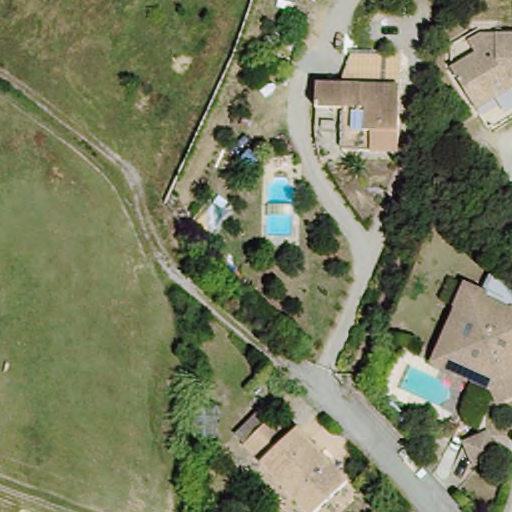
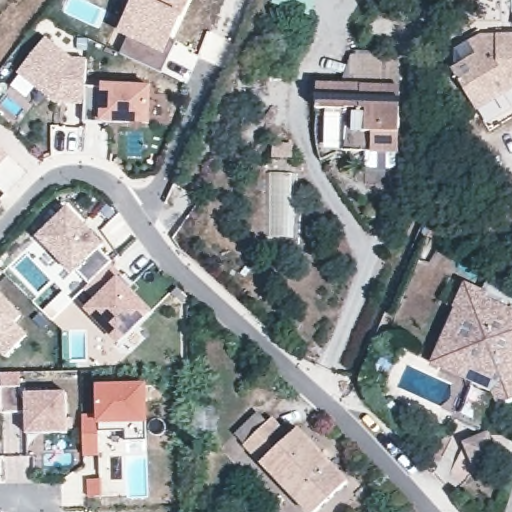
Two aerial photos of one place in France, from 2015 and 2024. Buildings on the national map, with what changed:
new [(122,54),(128,40),(118,34),(134,0),(192,0),(184,16),(173,37),(177,41),(162,72),(122,54)]
new [(273,0),(316,0),(310,16),(272,4),(273,0)]
unchanged [(474,105),(453,63),(498,42),(499,32),(512,33),(512,87),(512,89),(474,105)]
new [(54,98),(20,71),(48,37),(69,54),(84,54),(83,98),(54,98)]
new [(83,82),(100,82),(100,80),(146,80),(145,116),(101,115),(101,118),(83,117),(83,82)]
unchanged [(399,84),(396,164),(343,163),(342,121),(318,119),(320,80),(399,84)]
new [(10,157),(0,166),(0,147),(10,157)]
new [(90,282),(76,267),(73,271),(38,235),(68,206),(103,242),(100,246),(113,260),(111,262),(90,282)]
new [(121,273),(118,277),(149,310),(118,340),(87,307),(96,297),(85,287),(111,262),(121,273)]
unchanged [(505,391),(497,390),(500,380),(454,361),(463,333),(470,312),(462,307),(469,287),(488,293),(486,299),(512,309),(512,401),(509,402),(505,391)]
new [(22,314),(15,322),(27,332),(6,354),(0,349),(0,294),(22,314)]
unchanged [(454,361),(500,380),(497,390),(490,409),(474,403),(481,382),(442,365),(454,331),(463,333),(454,361)]
new [(23,412),(2,412),(2,410),(1,386),(22,385),(23,412)]
new [(147,385),(149,423),(143,424),(146,440),(126,441),(125,430),(99,432),(101,456),(84,456),(83,415),(97,413),(97,386),(147,385)]
new [(27,412),(27,411),(26,392),(67,391),(68,432),(45,432),(28,432),(27,418),(27,412)]
new [(22,392),(26,392),(27,412),(23,412),(22,392)]
new [(0,410),(0,393),(2,393),(2,410),(0,410)]
unchanged [(260,412),(290,435),(300,430),(353,485),(322,512),(301,512),(256,467),(228,435),(260,412)]
unchanged [(483,431),(490,452),(470,460),(462,438),(483,431)]

